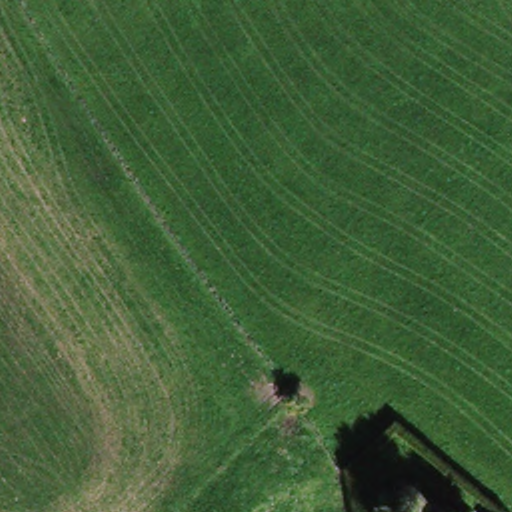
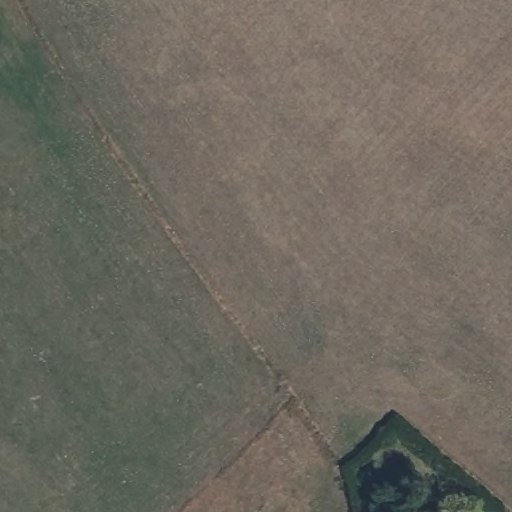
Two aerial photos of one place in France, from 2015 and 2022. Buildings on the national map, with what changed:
unchanged [(504,505),(510,512),(495,512),(504,505)]

